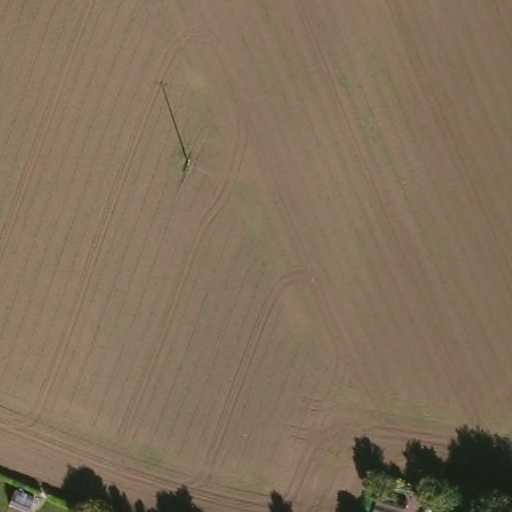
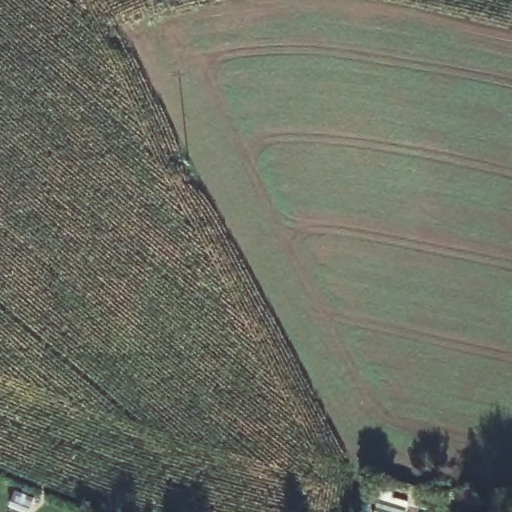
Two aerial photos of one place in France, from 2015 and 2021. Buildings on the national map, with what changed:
unchanged [(32,502),(27,512),(16,512),(7,507),(13,493),(32,502)]

